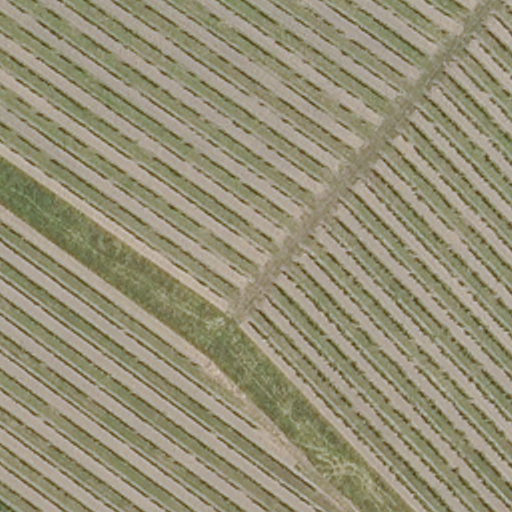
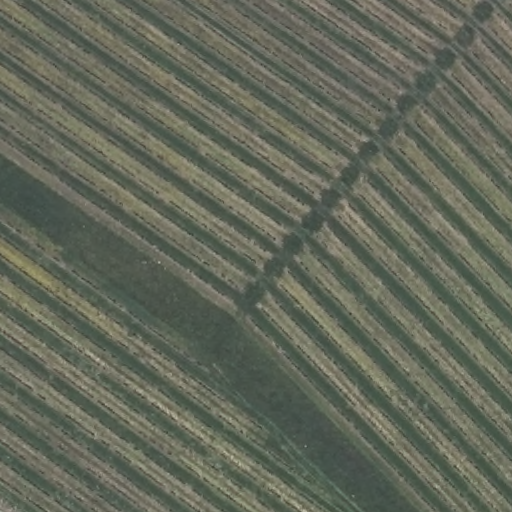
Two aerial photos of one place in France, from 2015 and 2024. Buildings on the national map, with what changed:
[]

